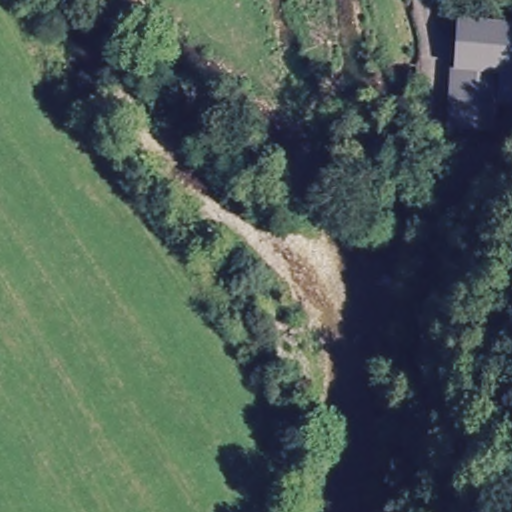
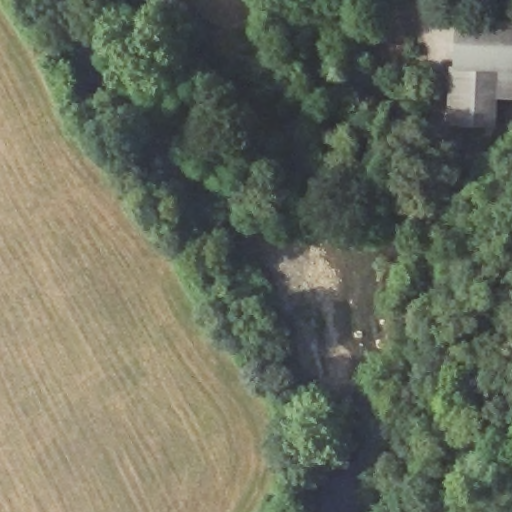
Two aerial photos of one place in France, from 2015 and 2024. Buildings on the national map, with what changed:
unchanged [(512,101),(498,100),(496,127),(447,125),(451,65),(455,66),(457,18),(512,20),(512,101)]

